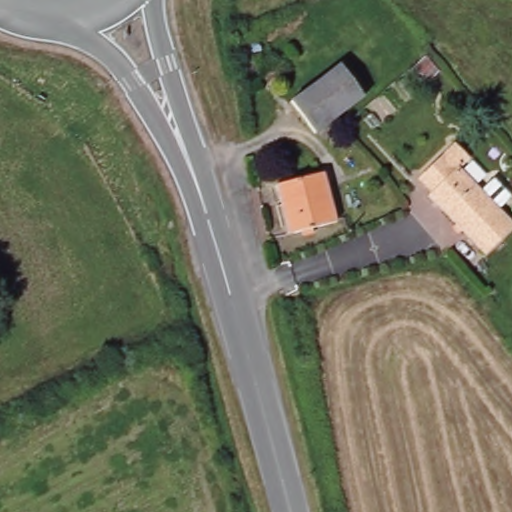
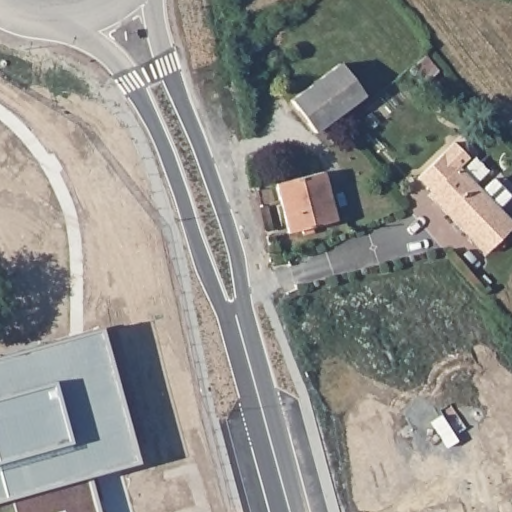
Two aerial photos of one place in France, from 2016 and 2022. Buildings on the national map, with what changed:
unchanged [(365,96),(315,133),(292,101),(341,65),(365,96)]
unchanged [(430,197),(433,194),(419,180),(456,145),(470,160),(460,170),(512,222),(512,229),(485,255),(430,197)]
unchanged [(338,222),(289,233),(278,185),(325,174),(338,222)]
new [(106,328),(144,469),(92,484),(100,512),(0,512),(0,357),(106,328)]

